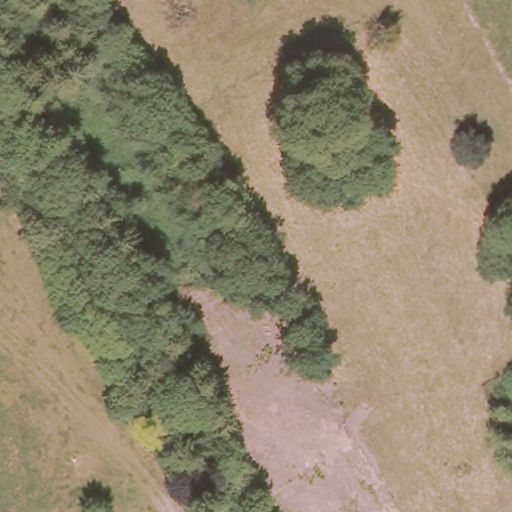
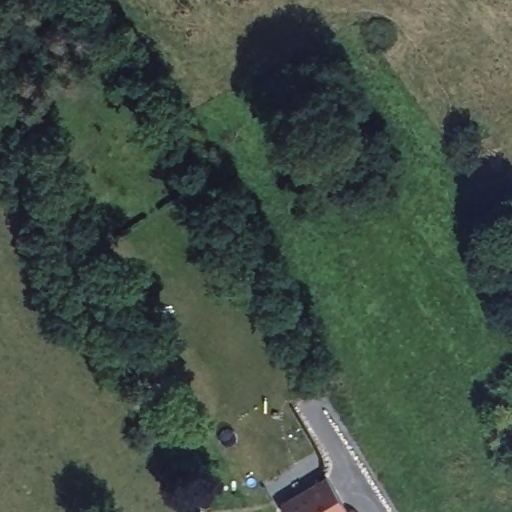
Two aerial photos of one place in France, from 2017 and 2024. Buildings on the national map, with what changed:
new [(281,506),(324,480),(346,512),(279,512),(279,511),(281,506)]

